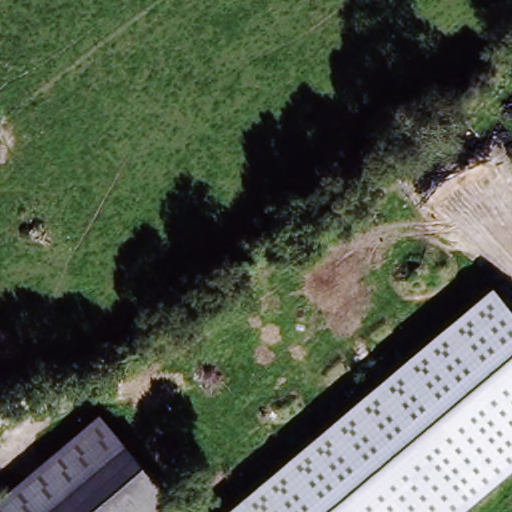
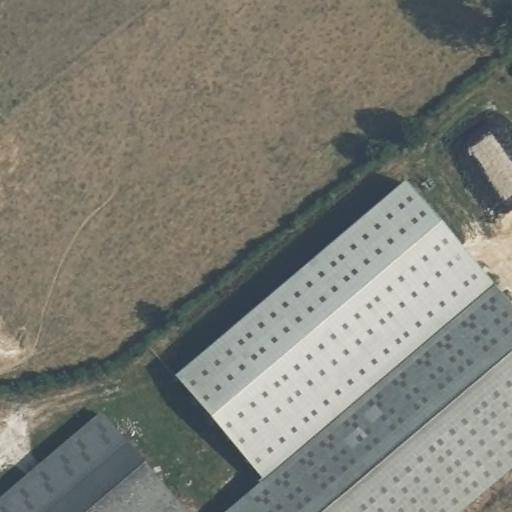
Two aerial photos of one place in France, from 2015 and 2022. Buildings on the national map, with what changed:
new [(493,281),(261,481),(175,377),(404,183),(493,281)]
unchanged [(493,281),(512,304),(512,467),(461,512),(226,512),(493,281)]
unchanged [(184,512),(0,512),(0,497),(103,415),(184,512)]

